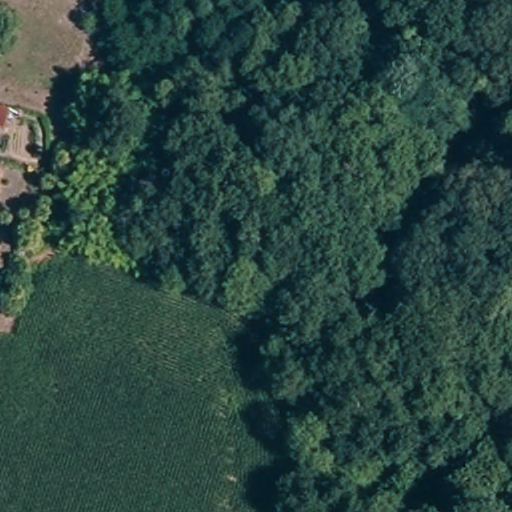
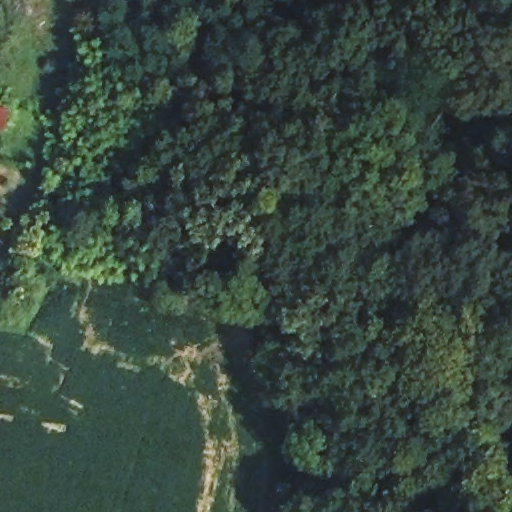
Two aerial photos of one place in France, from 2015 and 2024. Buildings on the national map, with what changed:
unchanged [(5,133),(0,132),(0,109),(10,111),(5,133)]

